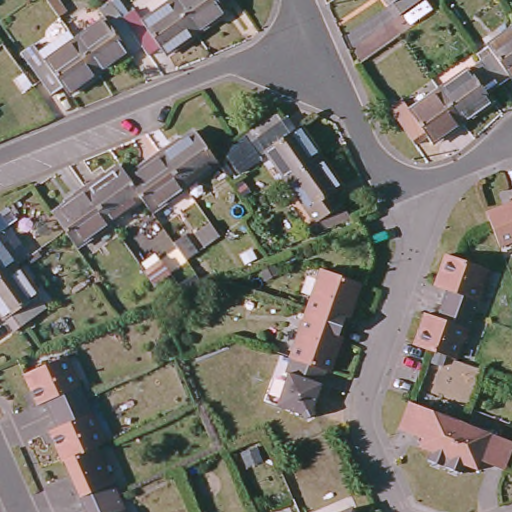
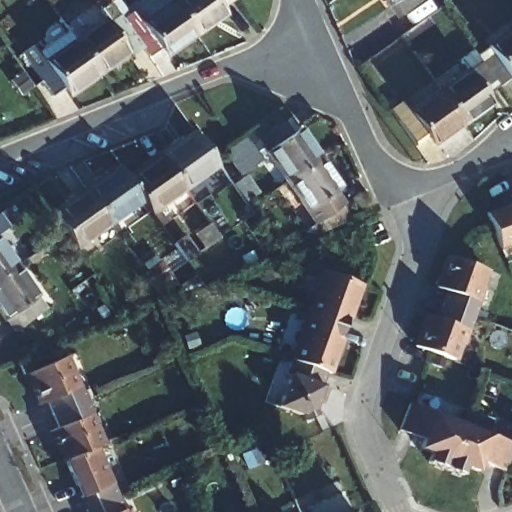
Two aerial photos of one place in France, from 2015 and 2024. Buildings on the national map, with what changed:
unchanged [(67,13),(60,18),(47,0),(58,0),(67,13)]
unchanged [(160,0),(214,0),(206,6),(211,12),(196,24),(181,35),(157,2),(160,0)]
unchanged [(380,0),(403,0),(388,11),(380,0)]
unchanged [(103,1),(114,16),(120,12),(128,22),(157,2),(181,35),(152,57),(146,49),(135,57),(125,44),(97,5),(103,1)]
unchanged [(102,70),(97,64),(83,72),(60,41),(91,20),(86,12),(97,5),(125,44),(113,52),(118,60),(102,70)]
unchanged [(476,56),(472,51),(512,22),(512,73),(507,76),(505,74),(494,82),(476,56)]
unchanged [(18,70),(60,41),(83,72),(53,94),(48,88),(36,97),(25,82),(18,70)]
unchanged [(435,86),(476,56),(494,82),(483,90),(487,97),(458,117),(435,86)]
unchanged [(397,96),(405,107),(435,86),(458,117),(427,139),(422,134),(411,142),(385,105),(397,96)]
unchanged [(277,172),(258,145),(233,163),(218,140),(263,108),(266,113),(270,110),(281,124),(289,119),(310,149),(277,172)]
unchanged [(181,184),(155,148),(170,137),(173,141),(191,127),(210,154),(214,160),(181,184)]
unchanged [(123,175),(143,161),(140,157),(155,148),(181,184),(147,208),(137,195),(123,175)]
unchanged [(300,219),(306,214),(277,172),(310,149),(331,179),(325,182),(342,210),(316,221),(305,225),(300,219)]
unchanged [(80,182),(96,171),(98,174),(115,164),(119,169),(123,175),(137,195),(105,219),(80,182)]
unchanged [(72,242),(61,226),(49,209),(66,197),(65,196),(63,193),(80,182),(105,219),(72,242)]
unchanged [(495,243),(480,207),(508,195),(506,190),(512,187),(512,236),(495,243)]
unchanged [(16,226),(8,232),(0,238),(0,220),(8,214),(16,226)]
unchanged [(205,247),(195,234),(210,224),(220,237),(205,247)]
unchanged [(174,244),(185,236),(197,252),(185,261),(177,249),(174,244)]
unchanged [(0,283),(0,246),(17,271),(0,283)]
unchanged [(485,281),(465,340),(458,337),(453,354),(415,341),(425,309),(436,313),(445,286),(434,282),(445,250),(484,263),(480,279),(485,281)]
unchanged [(37,251),(41,257),(31,263),(27,258),(37,251)]
unchanged [(154,286),(145,272),(161,261),(172,275),(154,286)]
unchanged [(5,324),(0,317),(0,283),(17,271),(46,313),(14,335),(6,322),(5,324)]
unchanged [(349,315),(345,314),(336,340),(340,341),(328,373),(325,372),(313,410),(316,416),(305,421),(301,413),(279,405),(290,376),(285,375),(320,272),(321,271),(360,285),(349,315)]
unchanged [(75,381),(77,380),(88,407),(86,408),(100,439),(91,442),(121,512),(83,512),(45,426),(52,423),(41,396),(33,398),(20,368),(61,351),(75,381)]
unchanged [(0,382),(0,374),(3,380),(0,382)]
unchanged [(475,455),(471,465),(460,460),(456,469),(423,456),(426,448),(414,443),(416,434),(393,425),(405,397),(509,438),(499,464),(475,455)]
unchanged [(354,512),(342,512),(351,507),(354,512)]

